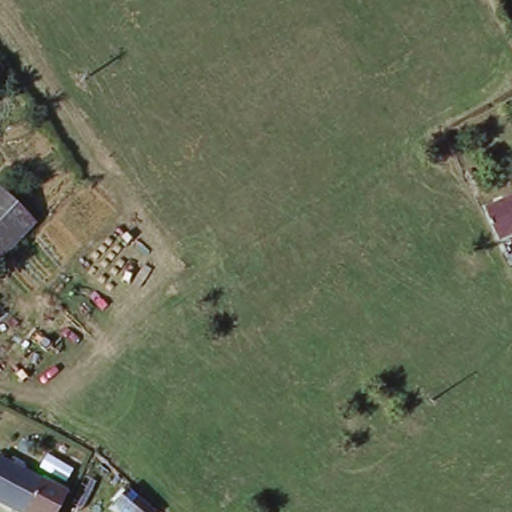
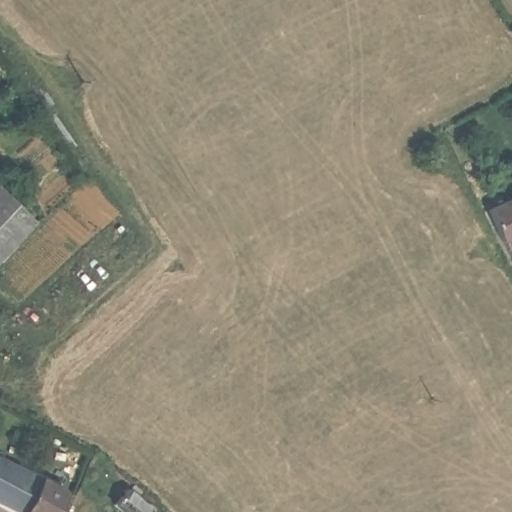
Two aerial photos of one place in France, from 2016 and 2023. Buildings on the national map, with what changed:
unchanged [(0,273),(0,194),(36,241),(0,273)]
unchanged [(499,244),(487,214),(512,202),(512,238),(499,244)]
unchanged [(0,463),(65,491),(56,512),(10,512),(0,507),(0,463)]
unchanged [(141,512),(118,512),(129,500),(141,512)]

